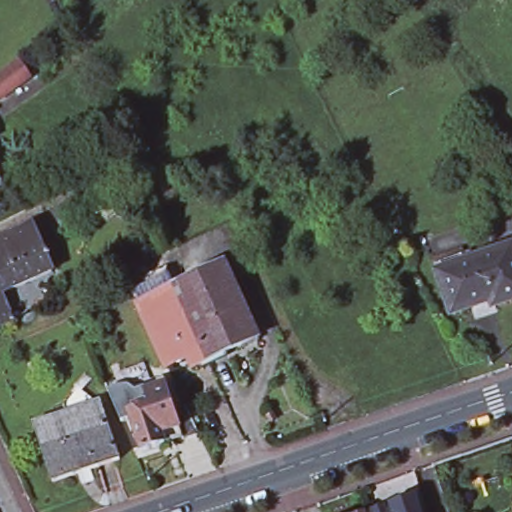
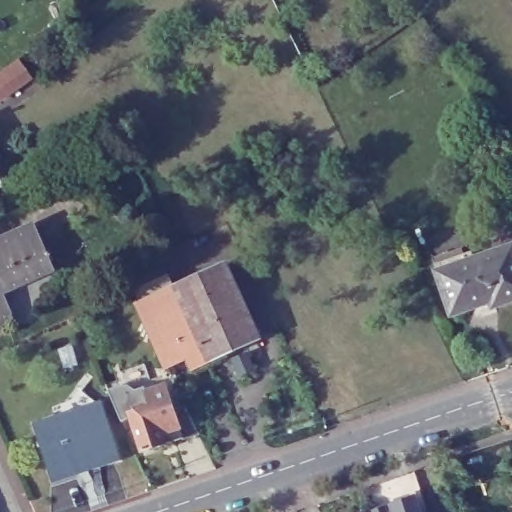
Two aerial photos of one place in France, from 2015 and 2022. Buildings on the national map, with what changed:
unchanged [(31,80),(29,80),(26,82),(3,99),(0,94),(0,73),(17,61),(25,72),(31,80)]
unchanged [(0,176),(0,169),(3,175),(0,176)]
unchanged [(50,271),(0,292),(0,240),(31,226),(50,271)]
unchanged [(501,308),(499,302),(460,315),(447,275),(442,260),(471,250),(476,265),(512,252),(512,304),(501,308)]
unchanged [(225,263),(259,336),(224,352),(189,280),(225,263)]
unchanged [(128,291),(125,286),(169,265),(179,285),(175,287),(138,305),(135,306),(128,291)]
unchanged [(179,285),(189,280),(224,352),(208,360),(203,348),(175,287),(179,285)]
unchanged [(175,287),(203,348),(166,365),(138,305),(175,287)]
unchanged [(0,325),(0,296),(10,320),(0,325)]
unchanged [(151,402),(154,413),(133,421),(136,426),(126,430),(119,414),(110,393),(127,387),(125,380),(148,372),(157,395),(151,397),(153,402),(151,402)]
unchanged [(203,441),(188,447),(186,443),(169,448),(171,452),(148,460),(136,426),(133,421),(154,413),(151,402),(153,402),(171,395),(179,417),(188,413),(203,441)]
unchanged [(99,400),(118,457),(53,478),(34,423),(99,400)]
unchanged [(425,491),(432,512),(379,512),(378,507),(425,491)]
unchanged [(378,507),(379,512),(364,512),(378,507)]

